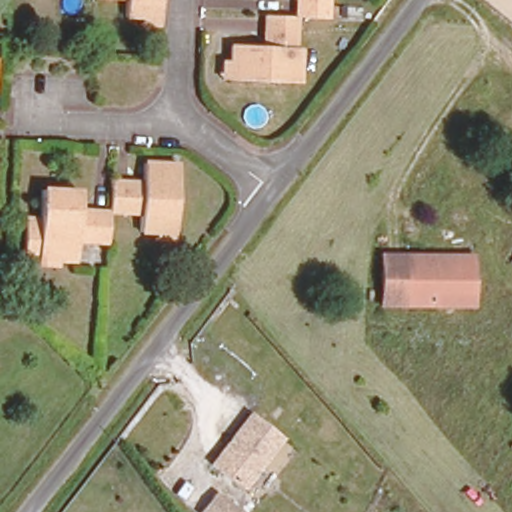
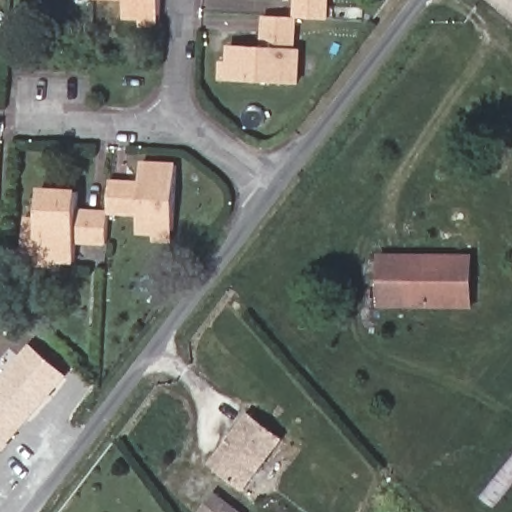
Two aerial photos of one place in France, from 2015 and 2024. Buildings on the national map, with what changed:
unchanged [(139,23),(139,12),(125,12),(125,0),(159,0),(159,2),(159,8),(157,23),(139,23)]
unchanged [(297,0),(330,0),(330,24),(296,21),(297,0)]
unchanged [(224,61),(230,61),(231,45),(265,46),(264,18),(296,21),(295,51),(301,51),(300,86),(237,83),(224,82),(224,61)]
unchanged [(156,239),(156,231),(140,230),(141,210),(110,209),(112,176),(143,177),(142,166),(175,166),(176,226),(177,237),(156,239)]
unchanged [(35,267),(36,252),(24,252),(25,216),(39,216),(39,190),(77,192),(77,207),(110,209),(107,241),(92,241),(91,233),(76,234),(77,259),(58,260),(58,267),(35,267)]
unchanged [(428,305),(380,305),(379,254),(471,255),(471,294),(471,305),(428,305)]
new [(0,380),(32,343),(69,376),(0,455),(0,380)]
unchanged [(256,417),(288,440),(249,492),(215,468),(256,417)]
unchanged [(232,512),(208,512),(216,501),(232,512)]

